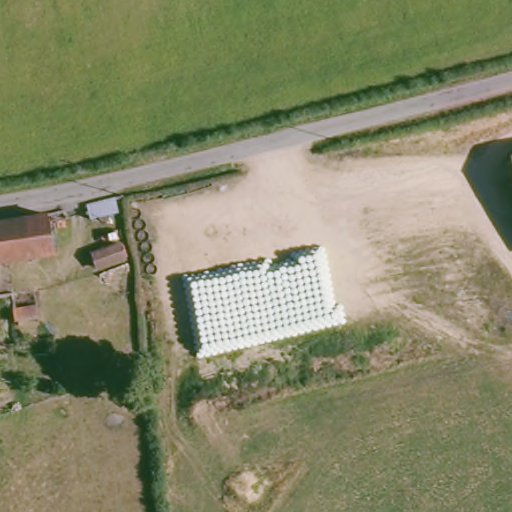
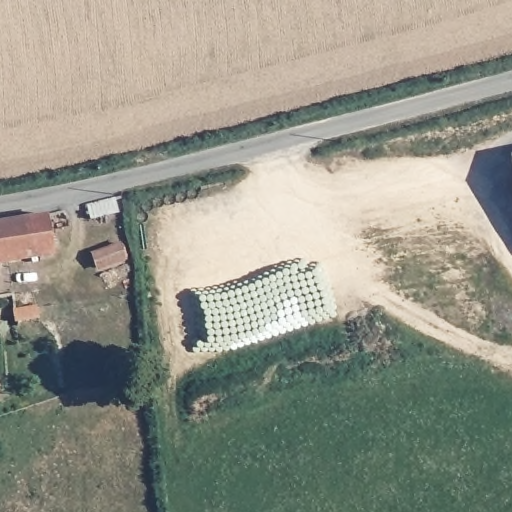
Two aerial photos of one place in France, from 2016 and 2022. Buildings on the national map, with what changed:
unchanged [(0,262),(0,219),(45,211),(51,255),(0,262)]
unchanged [(102,288),(94,268),(87,250),(120,240),(125,260),(135,276),(102,288)]

